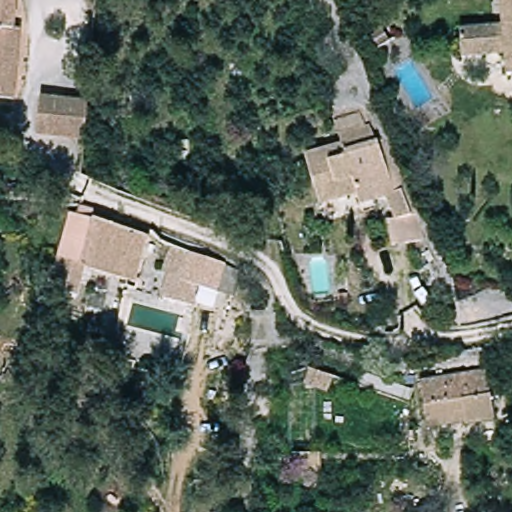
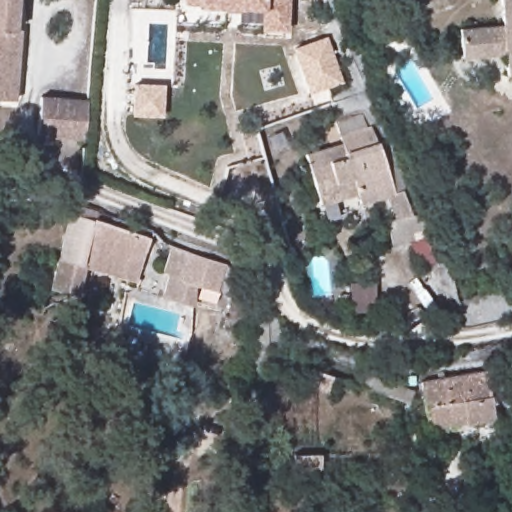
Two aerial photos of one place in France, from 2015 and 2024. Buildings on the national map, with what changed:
unchanged [(0,0),(17,0),(14,32),(21,32),(16,103),(0,102),(0,0)]
new [(184,0),(289,0),(287,32),(261,30),(261,10),(198,6),(184,5),(184,0)]
unchanged [(500,80),(500,56),(457,59),(456,29),(494,27),(493,0),(512,0),(512,79),(500,80)]
new [(327,37),(344,84),(309,96),(293,49),(327,37)]
unchanged [(58,137),(32,135),(36,95),(82,100),(79,126),(78,140),(58,137)]
unchanged [(340,147),(333,129),(353,122),(358,134),(370,130),(383,203),(356,211),(354,200),(317,210),(303,157),(340,147)]
unchanged [(404,200),(423,245),(389,254),(383,227),(390,225),(393,202),(404,200)]
unchanged [(47,291),(67,216),(75,218),(77,210),(99,214),(148,231),(133,285),(83,270),(76,299),(47,291)]
unchanged [(194,305),(164,297),(170,275),(166,273),(173,250),(191,255),(181,285),(198,290),(194,305)]
unchanged [(191,255),(227,266),(227,268),(242,272),(233,300),(218,293),(217,296),(198,290),(181,285),(191,255)]
unchanged [(249,332),(247,300),(264,298),(265,332),(249,332)]
unchanged [(335,372),(330,388),(318,384),(310,381),(306,380),(311,365),(335,372)]
unchanged [(360,368),(409,386),(405,397),(355,379),(360,368)]
unchanged [(423,413),(418,380),(482,370),(490,417),(463,423),(462,419),(425,425),(423,413)]
unchanged [(290,456),(318,456),(318,475),(291,475),(290,456)]

